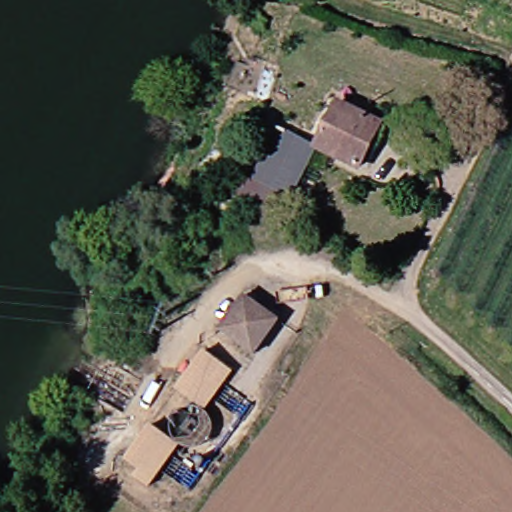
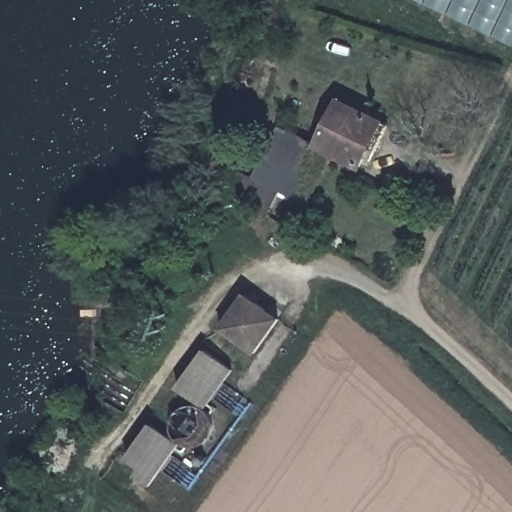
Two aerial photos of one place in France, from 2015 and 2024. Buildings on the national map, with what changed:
new [(512,0),(512,45),(419,0),(512,0)]
unchanged [(337,97),(390,119),(371,168),(317,144),(337,97)]
unchanged [(276,130),(317,144),(298,198),(269,189),(258,179),(276,130)]
unchanged [(264,354),(225,330),(246,294),(285,317),(264,354)]
unchanged [(213,407),(183,389),(207,348),(237,366),(213,407)]
unchanged [(154,480),(139,471),(144,463),(129,454),(150,417),(180,435),(154,480)]

